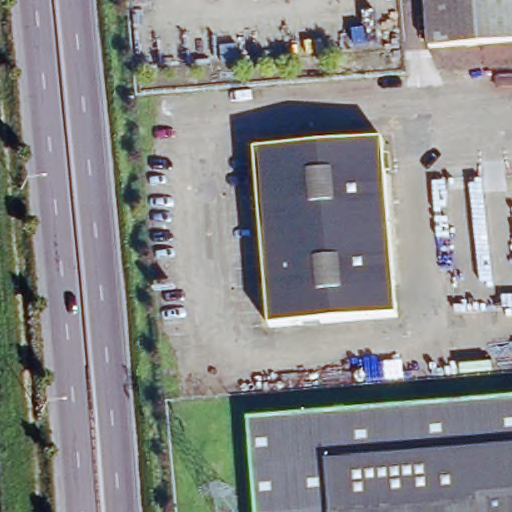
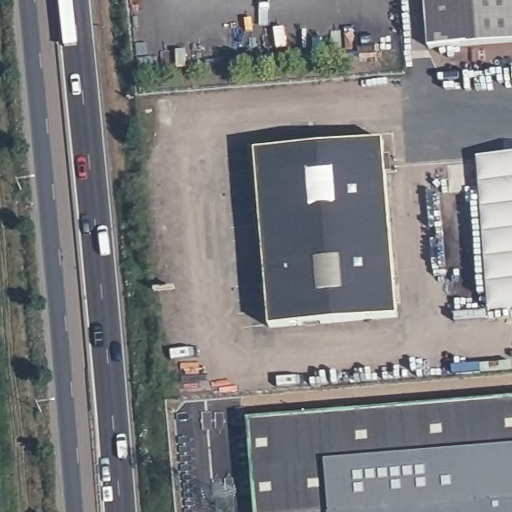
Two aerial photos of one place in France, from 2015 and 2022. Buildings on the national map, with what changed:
unchanged [(425,44),(422,0),(512,0),(512,37),(425,44)]
unchanged [(396,319),(267,331),(252,153),(382,141),(396,319)]
new [(487,311),(477,156),(512,154),(512,309),(487,311)]
unchanged [(512,397),(512,512),(255,512),(247,419),(512,397)]

